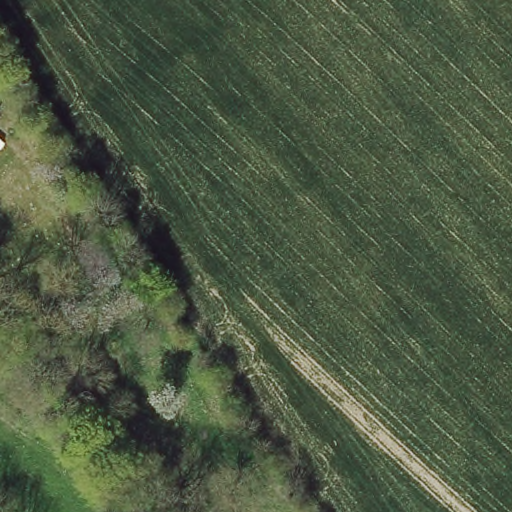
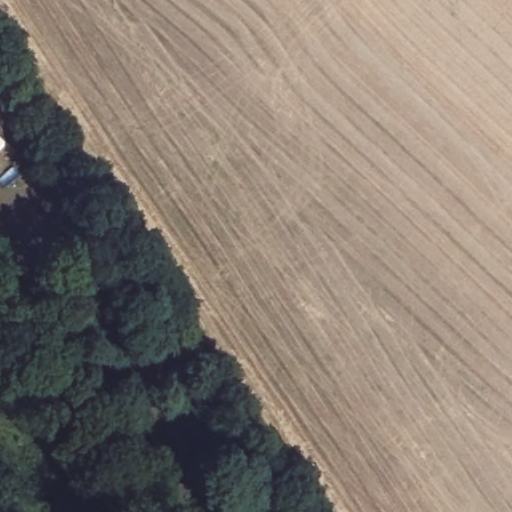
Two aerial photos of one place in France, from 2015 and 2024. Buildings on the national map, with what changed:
unchanged [(1,114),(0,115),(0,113),(1,114)]

